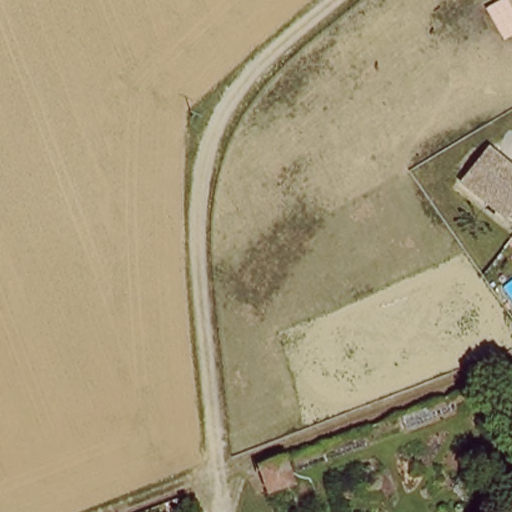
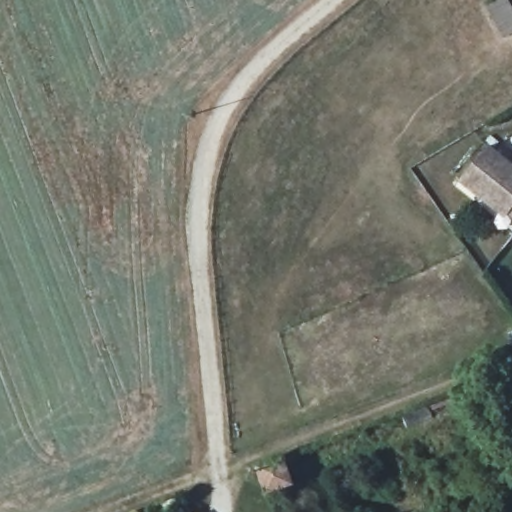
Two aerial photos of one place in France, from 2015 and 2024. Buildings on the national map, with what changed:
unchanged [(472,194),(468,198),(454,186),(479,153),(512,178),(512,226),(472,194)]
unchanged [(259,472),(283,463),(291,486),(268,495),(259,472)]

